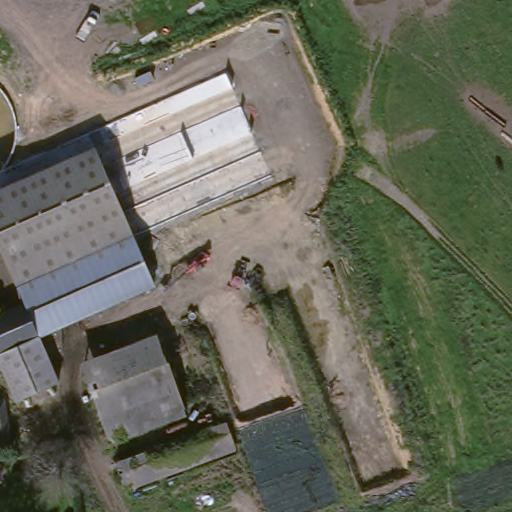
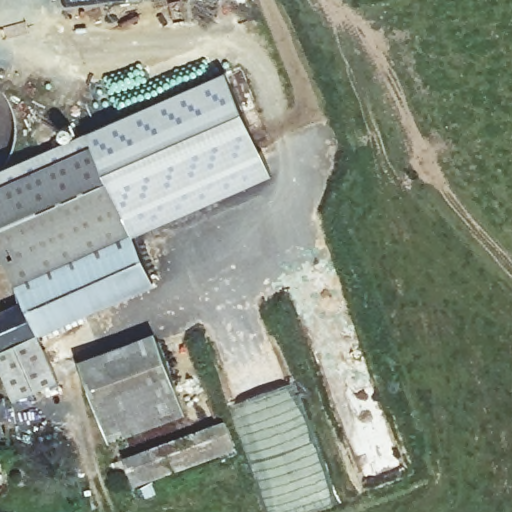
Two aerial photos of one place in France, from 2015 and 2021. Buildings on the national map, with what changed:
new [(93,145),(0,188),(0,170),(88,132),(226,74),(271,176),(134,237),(93,145)]
unchanged [(154,284),(38,334),(24,303),(0,247),(0,188),(93,145),(154,284)]
unchanged [(24,303),(38,334),(34,336),(0,350),(0,314),(24,303)]
unchanged [(176,418),(103,445),(78,371),(149,346),(176,418)]
unchanged [(4,448),(0,449),(0,422),(4,448)]
unchanged [(227,453),(129,489),(125,483),(115,487),(111,467),(220,429),(227,453)]
unchanged [(24,458),(6,461),(4,448),(21,446),(24,458)]

